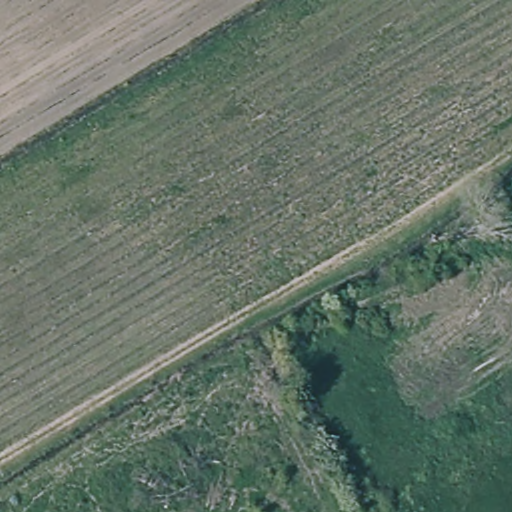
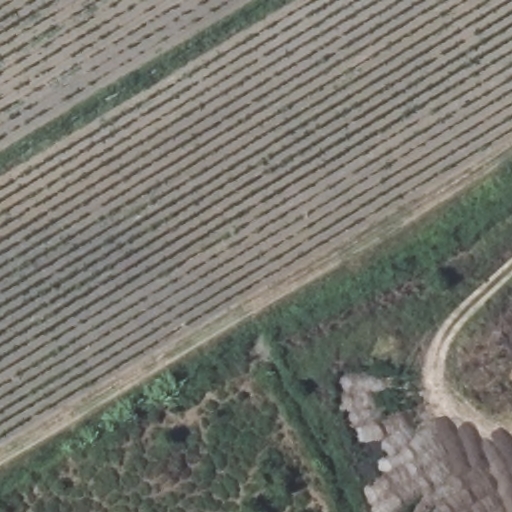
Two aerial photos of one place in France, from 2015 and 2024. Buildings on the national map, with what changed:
unchanged [(328,432),(307,392),(325,383),(347,423),(328,432)]

